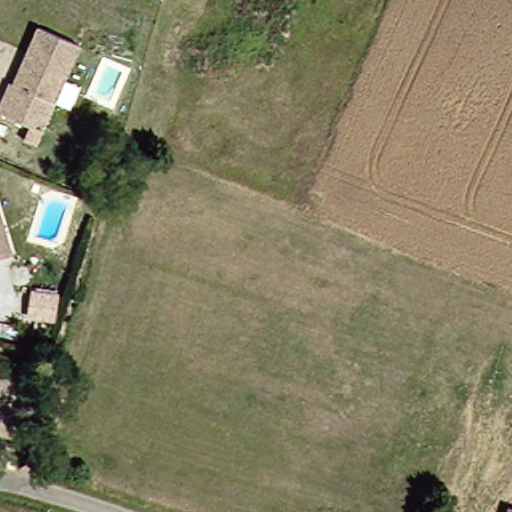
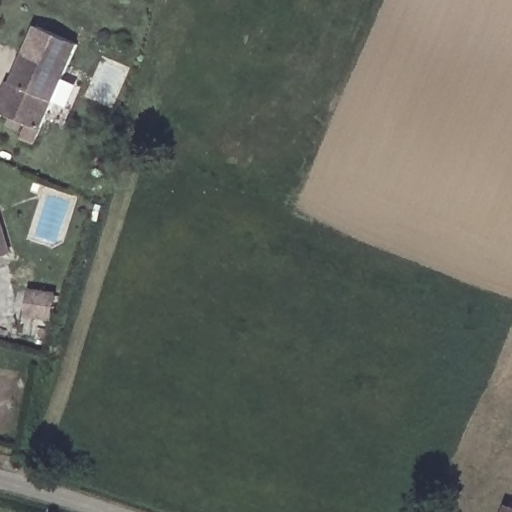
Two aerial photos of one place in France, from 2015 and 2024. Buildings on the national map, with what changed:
unchanged [(2,104),(41,21),(82,40),(37,136),(26,131),(32,118),(2,104)]
unchanged [(0,245),(3,253),(0,254),(0,245)]
unchanged [(509,505),(512,505),(512,512),(507,512),(509,505)]

